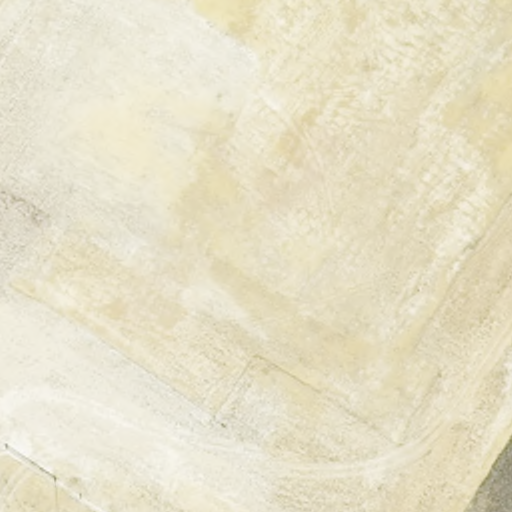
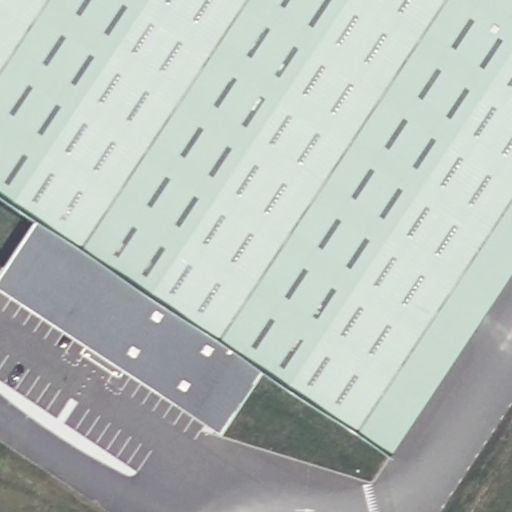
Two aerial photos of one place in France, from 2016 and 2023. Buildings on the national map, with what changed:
new [(265,365),(221,431),(0,285),(0,271),(41,215),(0,187),(0,0),(512,0),(512,270),(394,449),(265,365)]

